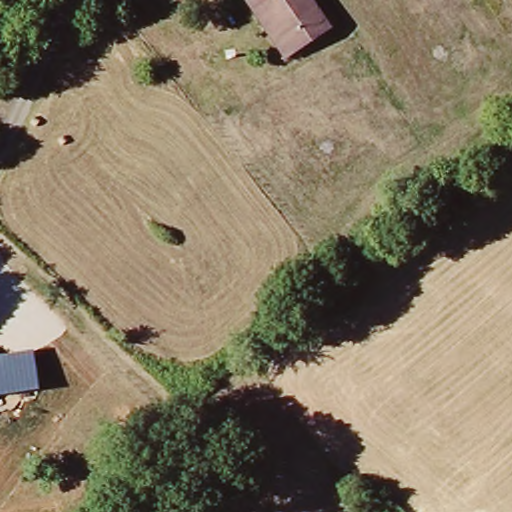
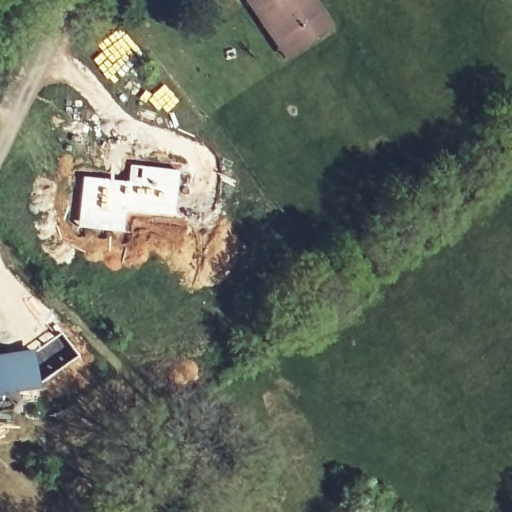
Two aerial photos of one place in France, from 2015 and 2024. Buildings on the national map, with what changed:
unchanged [(292,50),(285,56),(247,0),(311,0),(329,26),(292,50)]
new [(82,176),(127,181),(129,164),(180,171),(175,216),(127,212),(124,232),(77,227),(82,176)]
unchanged [(34,350),(39,388),(0,395),(0,355),(34,350)]

